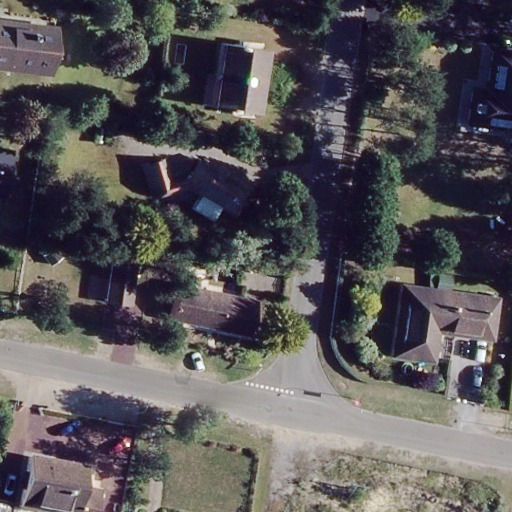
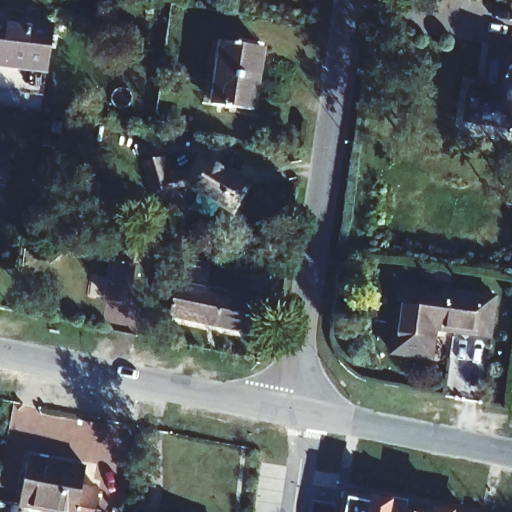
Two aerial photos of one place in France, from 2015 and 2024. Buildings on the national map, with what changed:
unchanged [(47,71),(0,64),(0,19),(54,27),(47,71)]
unchanged [(261,48),(252,110),(213,105),(222,42),(261,48)]
unchanged [(470,125),(475,95),(489,96),(495,56),(512,58),(512,131),(470,125)]
unchanged [(160,162),(172,193),(154,200),(142,169),(160,162)]
unchanged [(7,195),(0,194),(0,163),(14,165),(7,195)]
unchanged [(242,192),(229,215),(183,188),(196,164),(242,192)]
unchanged [(135,265),(131,301),(111,298),(116,262),(135,265)]
unchanged [(256,302),(249,335),(172,317),(180,284),(256,302)]
unchanged [(418,361),(385,357),(390,327),(391,327),(396,288),(457,297),(452,336),(427,332),(424,362),(418,361)]
unchanged [(497,303),(492,343),(452,336),(457,297),(497,303)]
unchanged [(87,470),(83,490),(102,493),(99,512),(34,512),(19,509),(29,460),(87,470)]
new [(344,492),(370,498),(444,512),(340,512),(344,492)]

